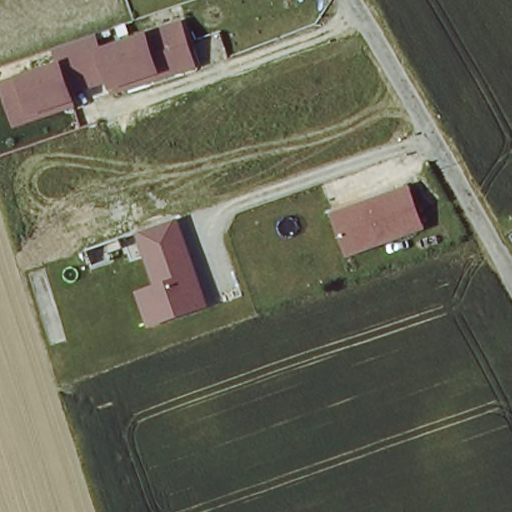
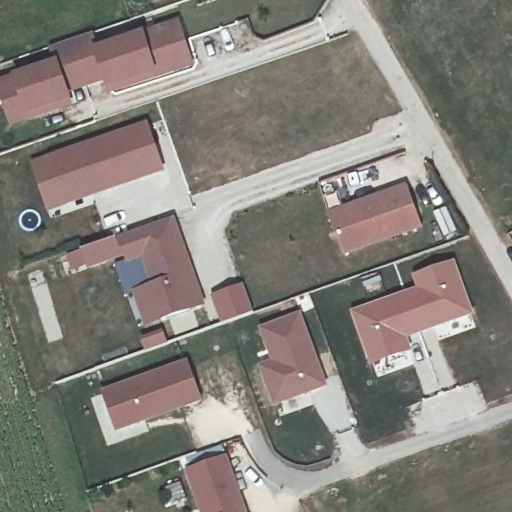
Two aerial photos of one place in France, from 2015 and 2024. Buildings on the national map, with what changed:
unchanged [(108,81),(75,92),(77,106),(10,129),(0,97),(0,82),(52,61),(48,45),(90,30),(96,46),(178,17),(193,67),(112,92),(108,81)]
new [(148,121),(166,172),(49,214),(31,163),(148,121)]
unchanged [(346,255),(330,212),(407,184),(423,228),(346,255)]
unchanged [(149,330),(134,290),(152,285),(133,233),(176,216),(210,306),(149,330)]
new [(133,233),(142,258),(127,265),(125,257),(89,271),(87,266),(73,272),(68,255),(133,233)]
new [(415,286),(410,275),(455,258),(475,314),(408,340),(413,353),(370,368),(349,310),(415,286)]
new [(272,361),(259,328),(301,311),(328,387),(275,408),(259,365),(272,361)]
new [(115,431),(101,390),(186,360),(201,401),(115,431)]
new [(246,512),(199,512),(185,470),(225,455),(246,512)]

